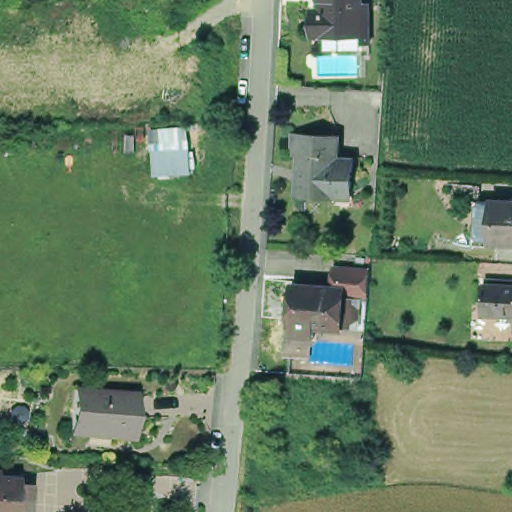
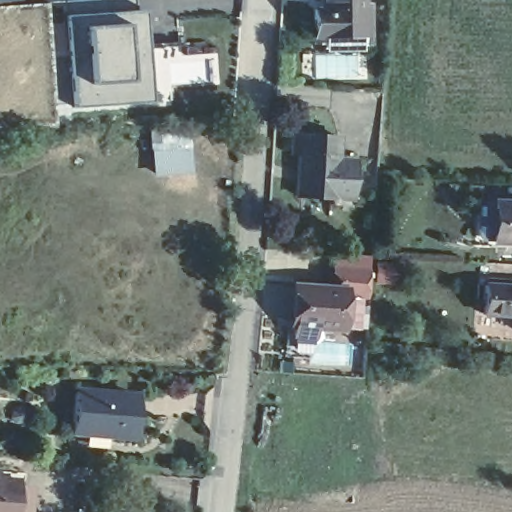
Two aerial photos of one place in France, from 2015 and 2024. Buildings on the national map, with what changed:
unchanged [(316,10),(325,9),(326,0),(367,0),(368,37),(317,37),(316,10)]
new [(145,12),(150,101),(71,106),(67,16),(145,12)]
new [(189,124),(195,177),(153,181),(148,129),(189,124)]
unchanged [(300,196),(302,155),(295,154),(295,134),(342,136),(341,158),(357,159),(355,199),(300,196)]
unchanged [(478,240),(480,195),(512,196),(512,241),(478,240)]
unchanged [(283,345),(284,332),(288,333),(290,293),(326,296),(328,276),(364,278),(362,305),(355,305),(337,302),(334,337),(310,335),(308,347),(283,345)]
unchanged [(484,312),(485,284),(490,285),(490,277),(512,279),(512,315),(484,312)]
unchanged [(78,437),(85,379),(150,388),(143,446),(78,437)]
unchanged [(0,474),(18,475),(17,480),(29,480),(27,512),(0,512),(0,474)]

